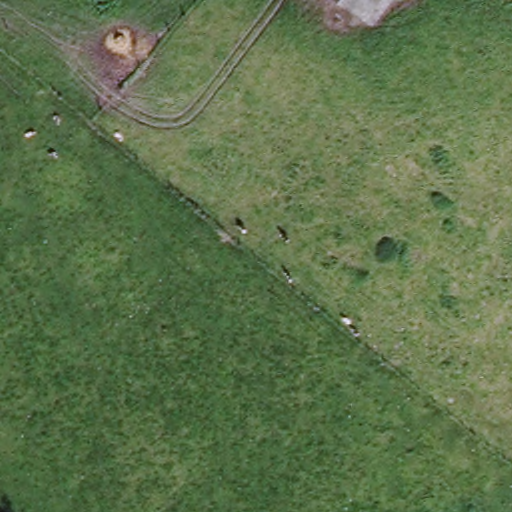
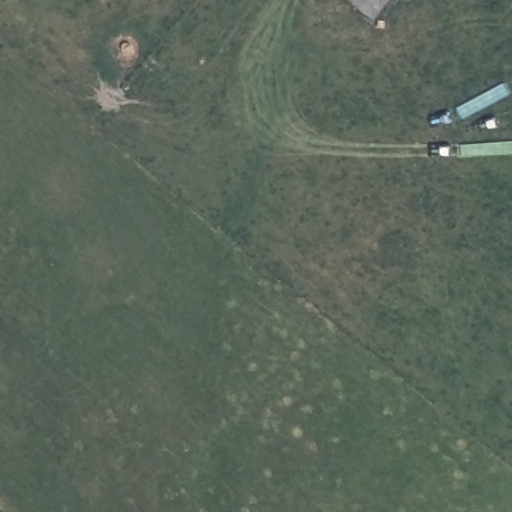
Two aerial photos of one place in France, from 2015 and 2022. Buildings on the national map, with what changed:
unchanged [(338,0),(388,0),(371,24),(338,0)]

